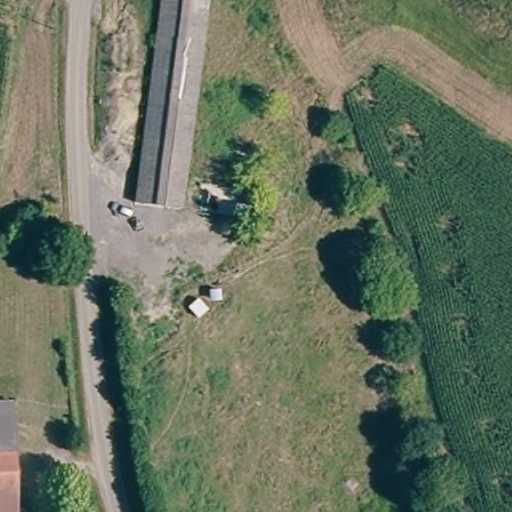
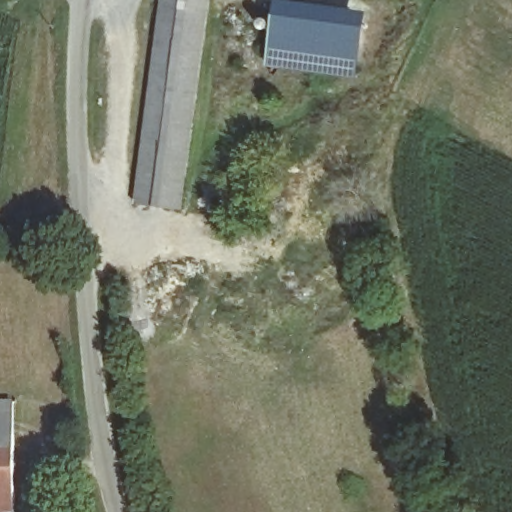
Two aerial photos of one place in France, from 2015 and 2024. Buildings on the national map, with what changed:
unchanged [(125,215),(165,0),(215,0),(174,222),(125,215)]
new [(286,0),(368,11),(360,79),(269,66),(278,0),(286,0)]
unchanged [(17,411),(17,512),(0,512),(0,410),(17,411)]

